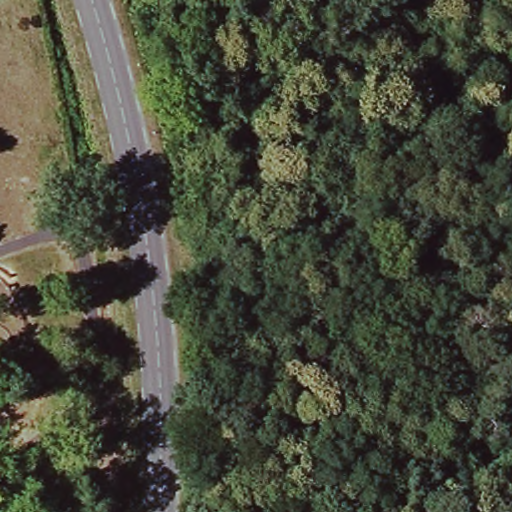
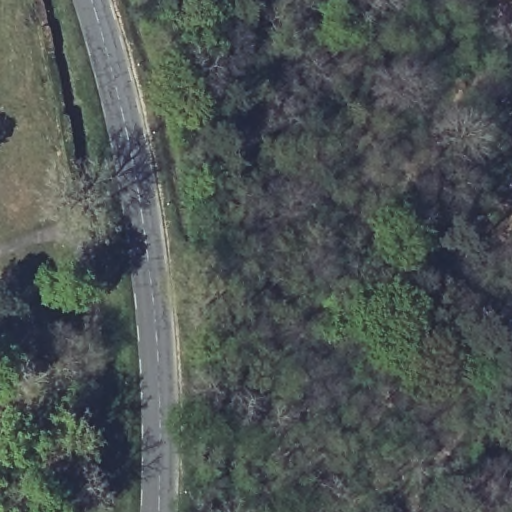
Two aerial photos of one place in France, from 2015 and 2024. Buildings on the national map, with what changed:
[]

